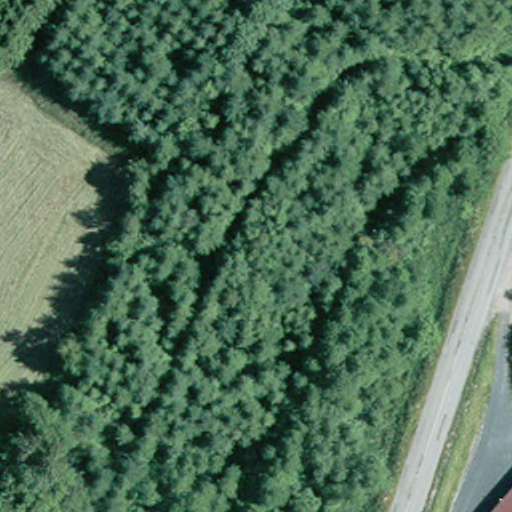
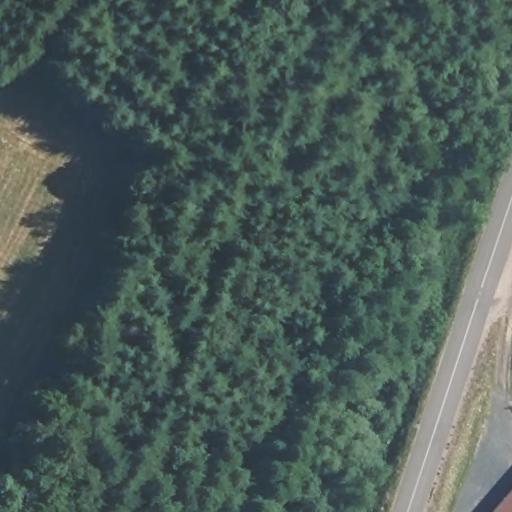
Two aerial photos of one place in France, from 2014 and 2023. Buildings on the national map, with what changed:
unchanged [(512,496),(512,512),(499,512),(512,496)]

